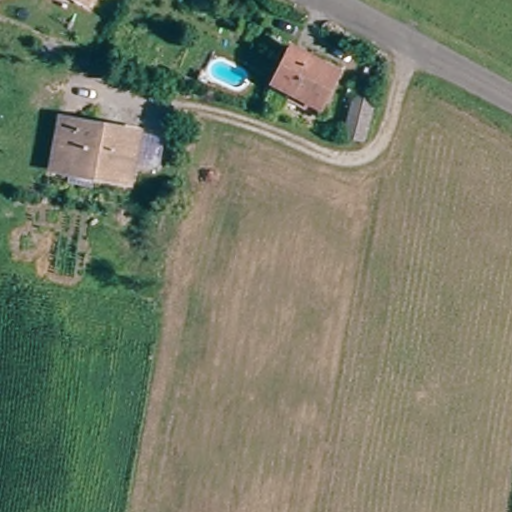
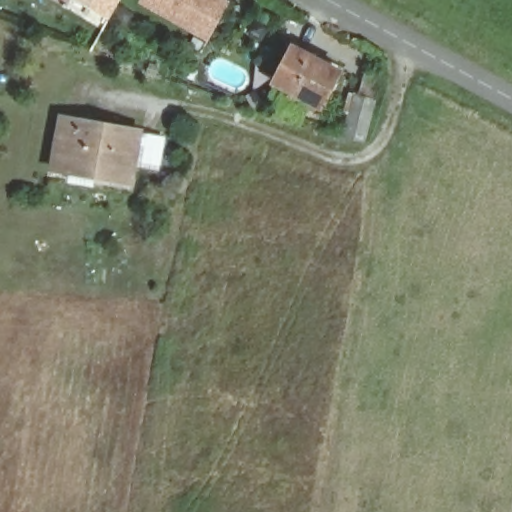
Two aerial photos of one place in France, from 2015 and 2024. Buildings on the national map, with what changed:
unchanged [(88,0),(95,0),(94,3),(88,0)]
new [(231,3),(212,40),(157,11),(144,4),(146,0),(225,0),(231,3)]
unchanged [(322,103),(275,78),(291,46),(339,70),(322,103)]
unchanged [(53,171),(57,121),(76,122),(92,123),(134,126),(130,177),(95,174),(77,173),(53,171)]

